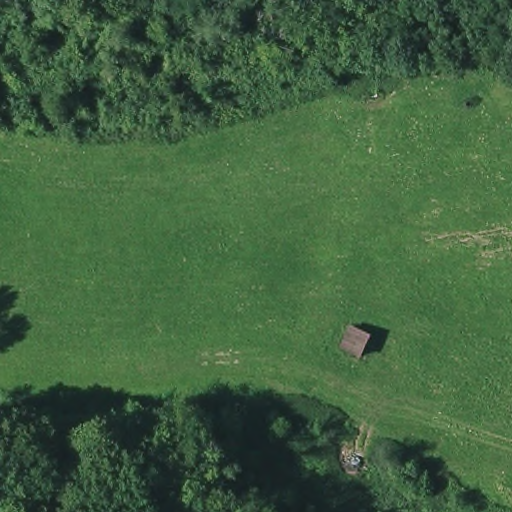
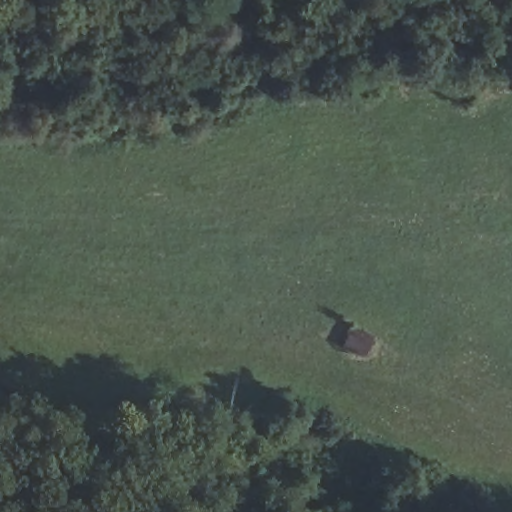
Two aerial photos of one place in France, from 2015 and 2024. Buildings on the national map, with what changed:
unchanged [(372,337),(360,362),(338,348),(350,326),(372,337)]

